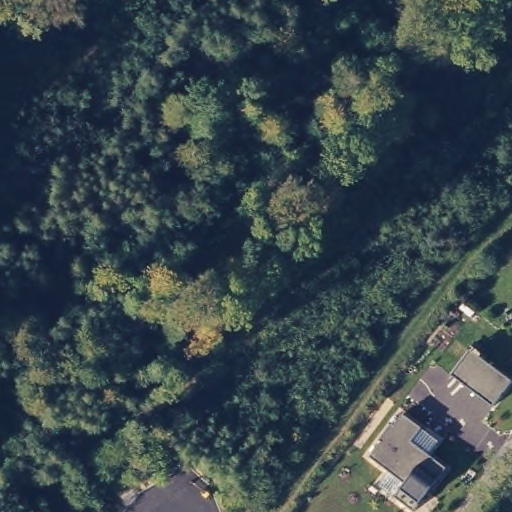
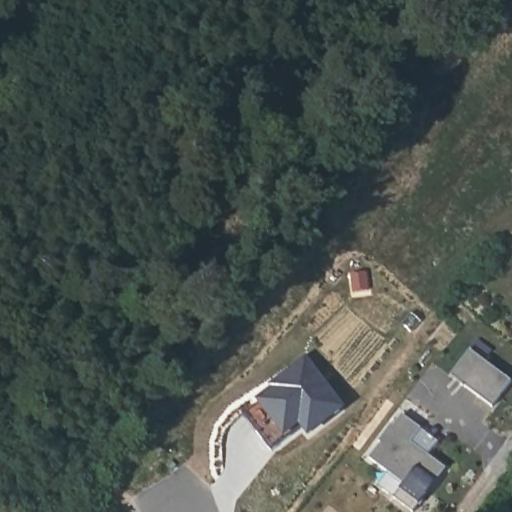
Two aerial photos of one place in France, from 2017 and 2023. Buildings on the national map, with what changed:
unchanged [(491,406),(449,377),(471,350),(511,382),(491,406)]
new [(289,373),(288,370),(304,357),(319,378),(316,381),(336,408),(306,432),(299,424),(268,449),(239,411),(289,373)]
unchanged [(410,512),(391,498),(401,484),(369,458),(381,441),(378,437),(391,421),(394,423),(402,414),(422,429),(412,442),(448,467),(415,512),(410,512)]

